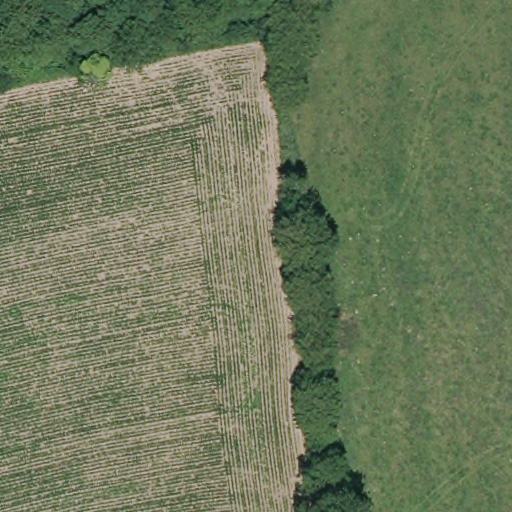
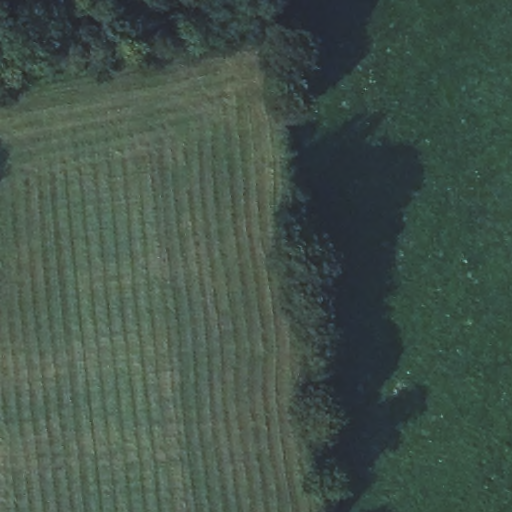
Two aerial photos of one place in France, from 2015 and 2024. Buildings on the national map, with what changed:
[]

